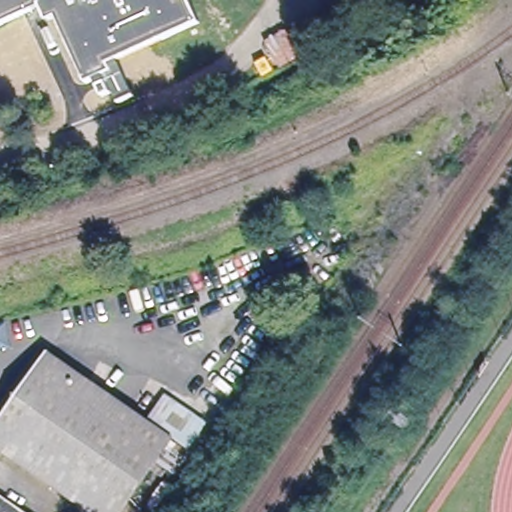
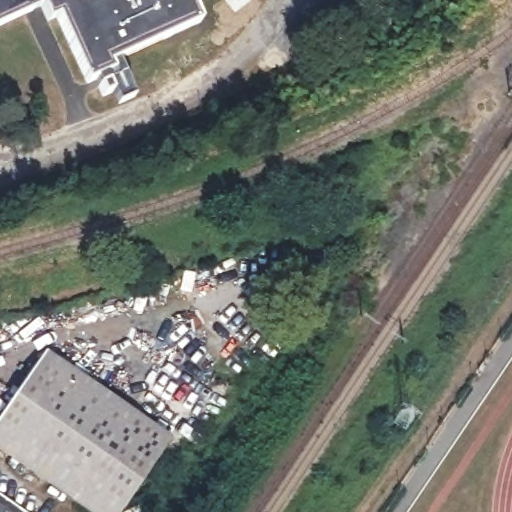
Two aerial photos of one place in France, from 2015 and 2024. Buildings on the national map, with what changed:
unchanged [(112,70),(85,81),(53,16),(45,20),(39,7),(0,26),(0,0),(188,0),(196,20),(110,63),(112,70)]
unchanged [(116,512),(97,512),(0,445),(0,411),(43,349),(169,436),(116,512)]
unchanged [(0,496),(23,512),(0,512),(0,496)]

